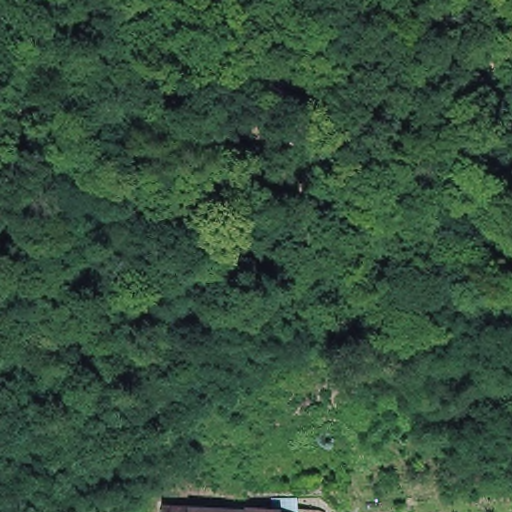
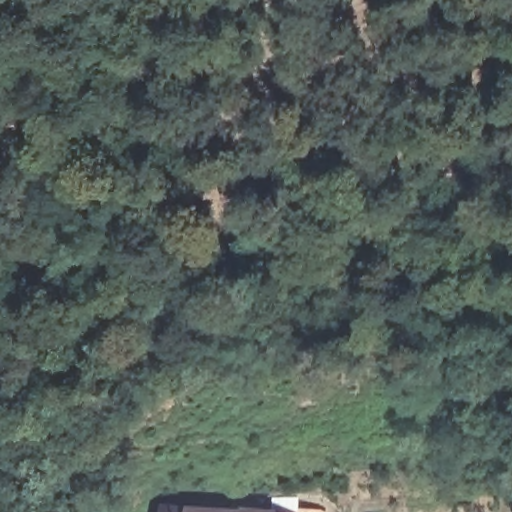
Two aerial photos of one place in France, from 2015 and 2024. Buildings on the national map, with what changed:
unchanged [(245,510),(245,512),(166,512),(166,505),(245,510)]
unchanged [(284,511),(287,507),(300,507),(325,508),(324,512),(245,512),(245,510),(280,511),(284,511)]

